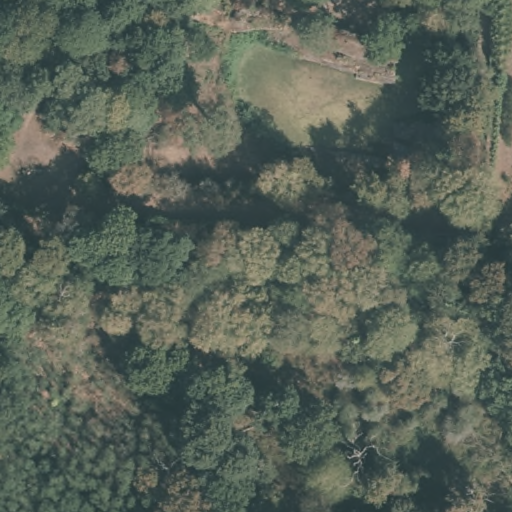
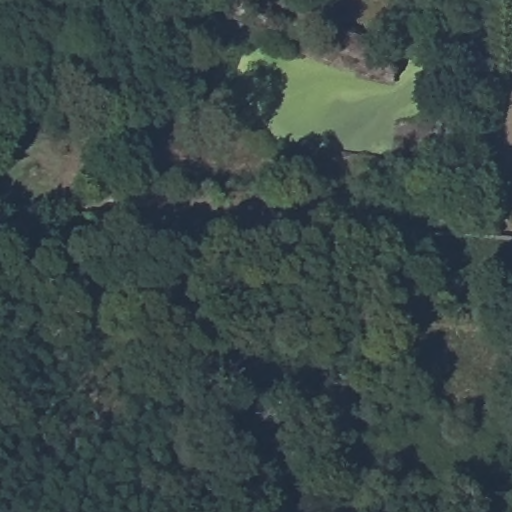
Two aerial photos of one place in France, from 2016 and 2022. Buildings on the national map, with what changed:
[]

